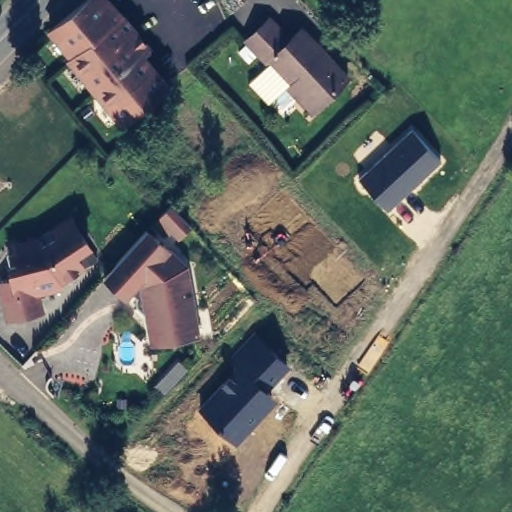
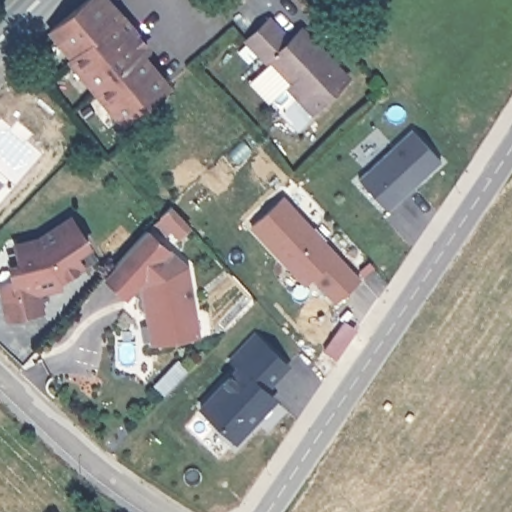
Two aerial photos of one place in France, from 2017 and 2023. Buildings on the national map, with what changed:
unchanged [(93,0),(112,0),(128,17),(154,47),(144,56),(173,85),(131,123),(75,61),(79,58),(56,32),(57,31),(93,0)]
unchanged [(281,88),(286,83),(264,58),(259,63),(238,40),(263,18),(283,40),(294,28),(340,77),(309,108),(303,113),(281,88)]
unchanged [(412,130),(441,162),(388,211),(359,178),(412,130)]
new [(249,227),(284,195),(361,280),(335,304),(311,280),(303,286),(249,227)]
unchanged [(193,228),(181,241),(157,220),(170,206),(193,228)]
unchanged [(86,266),(60,286),(62,290),(41,296),(45,312),(8,322),(0,286),(0,284),(13,280),(9,260),(18,259),(13,245),(43,237),(71,216),(94,246),(81,254),(86,266)]
unchanged [(149,232),(188,268),(199,337),(152,346),(146,315),(140,309),(138,308),(138,306),(138,304),(138,301),(138,298),(141,295),(134,290),(128,297),(106,278),(149,232)]
unchanged [(289,367),(269,392),(278,400),(236,445),(198,408),(238,366),(229,358),(253,332),(289,367)]

